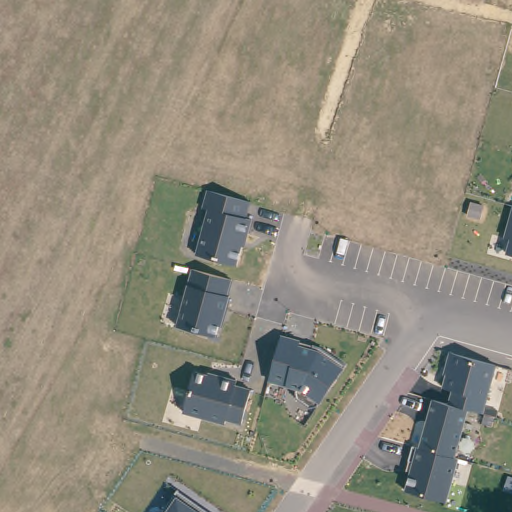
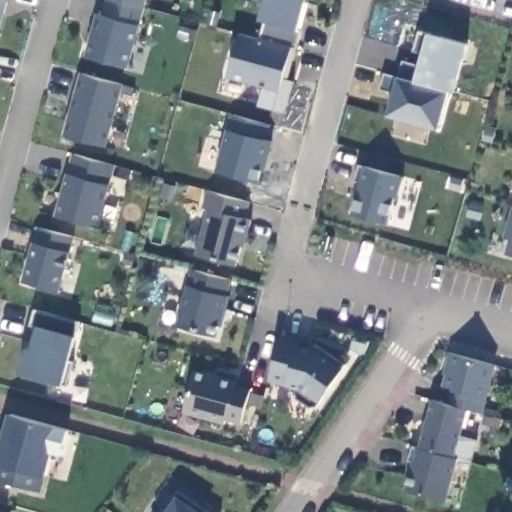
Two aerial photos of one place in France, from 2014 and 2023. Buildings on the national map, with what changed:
new [(6,2),(2,0),(7,0),(6,2)]
new [(96,14),(104,16),(108,0),(147,0),(127,69),(86,57),(96,14)]
new [(296,30),(302,30),(297,49),(289,80),(294,80),(284,112),(258,105),(264,87),(228,78),(240,32),(261,39),(260,20),(265,0),(305,0),(296,30)]
new [(3,15),(0,27),(0,15),(3,15)]
new [(393,95),(382,90),(386,74),(399,77),(403,60),(420,67),(429,35),(468,44),(455,91),(449,90),(438,127),(388,115),(393,95)]
new [(82,74),(123,85),(106,148),(64,136),(82,74)]
new [(228,130),(233,114),(270,125),(265,139),(274,141),(260,184),(218,171),(228,130)]
new [(67,173),(72,175),(76,155),(116,165),(111,185),(109,185),(97,229),(55,217),(67,173)]
new [(364,166),(403,177),(388,225),(352,215),(364,166)]
unchanged [(209,210),(203,209),(209,190),(250,202),(247,219),(252,220),(245,249),(242,247),(236,266),(195,255),(209,210)]
unchanged [(510,240),(504,238),(512,206),(512,257),(507,255),(510,240)]
new [(33,241),(36,242),(38,227),(75,237),(71,254),(70,253),(59,292),(23,282),(33,241)]
unchanged [(191,269),(233,281),(218,337),(175,327),(191,269)]
new [(76,337),(63,386),(20,373),(26,348),(31,349),(37,328),(30,325),(35,310),(78,322),(76,337)]
unchanged [(315,347),(345,368),(317,406),(309,407),(297,398),(297,390),(269,382),(280,337),(315,347)]
unchanged [(496,365),(484,414),(468,410),(454,458),(457,459),(446,502),(407,493),(431,400),(449,405),(453,390),(443,386),(451,353),(496,365)]
unchanged [(237,383),(235,387),(251,391),(242,425),(225,420),(224,425),(184,415),(194,372),(237,383)]
new [(69,430),(61,455),(51,452),(44,477),(41,492),(0,481),(0,444),(8,414),(69,430)]
unchanged [(205,512),(165,512),(179,494),(205,512)]

